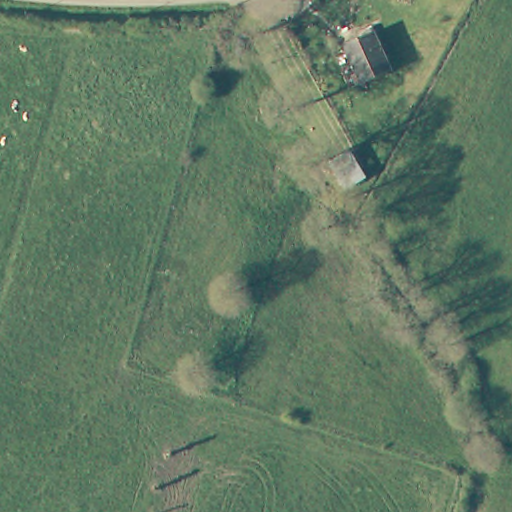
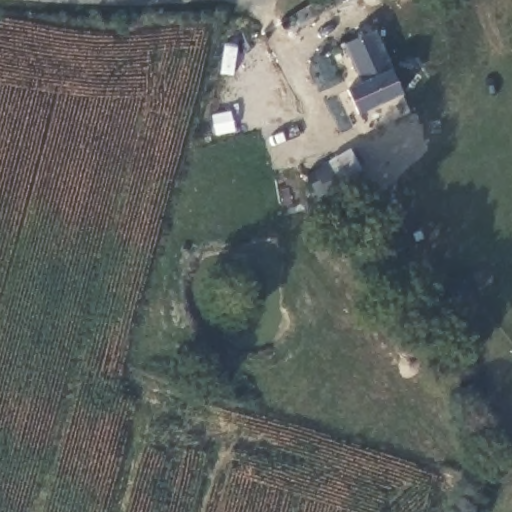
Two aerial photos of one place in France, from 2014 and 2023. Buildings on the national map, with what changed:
unchanged [(394,69),(363,81),(347,44),(378,31),(394,69)]

